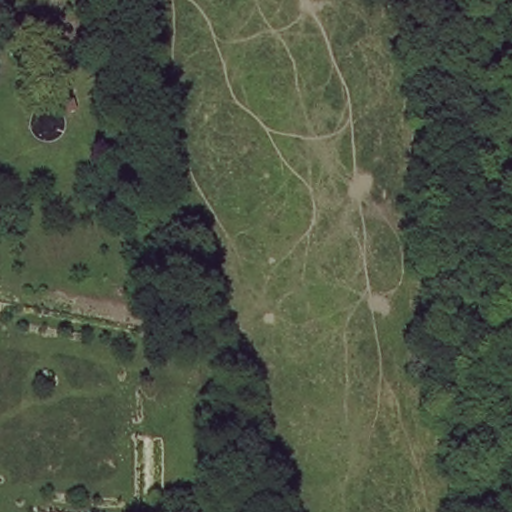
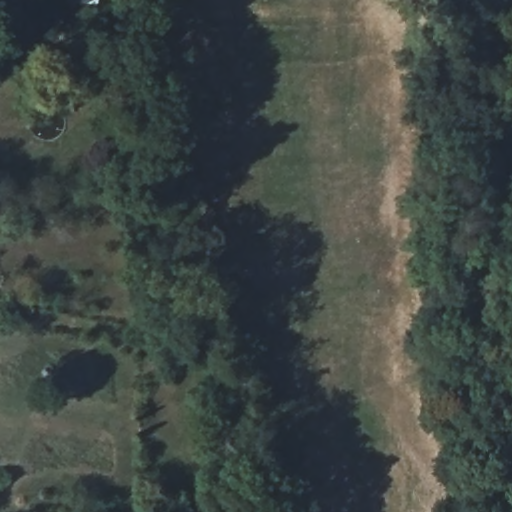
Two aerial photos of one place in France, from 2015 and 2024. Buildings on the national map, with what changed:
[]

